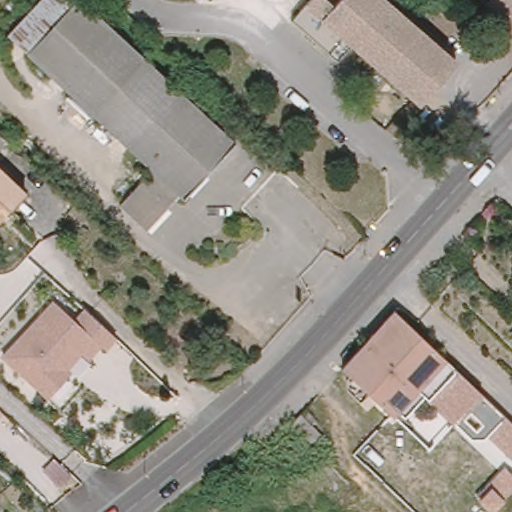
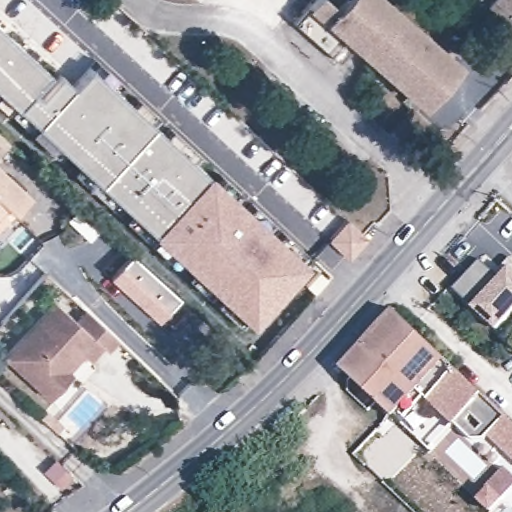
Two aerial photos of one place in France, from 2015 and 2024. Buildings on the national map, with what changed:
demolished [(184,198),(179,195),(147,230),(119,204),(152,169),(26,54),(27,53),(75,0),(82,0),(237,142),(184,198)]
unchanged [(310,0),(326,0),(331,4),(336,0),(386,0),(404,15),(367,57),(352,44),(335,61),(322,49),(312,40),(291,22),(310,0)]
unchanged [(490,0),(512,0),(512,27),(487,4),(490,0)]
unchanged [(367,57),(404,15),(456,60),(441,77),(430,89),(419,102),(407,92),(394,81),(367,57)]
new [(35,91),(41,96),(60,75),(73,87),(91,68),(207,176),(209,173),(309,264),(252,326),(0,92),(0,27),(50,73),(35,91)]
unchanged [(8,142),(0,151),(0,136),(8,142)]
unchanged [(25,191),(9,208),(0,218),(0,168),(25,191)]
new [(348,256),(328,238),(347,217),(367,236),(348,256)]
new [(454,289),(480,260),(496,273),(512,257),(512,314),(498,329),(454,289)]
new [(317,271),(326,279),(313,292),(305,285),(315,274),(317,271)]
unchanged [(76,316),(86,307),(116,335),(104,346),(96,340),(50,392),(3,357),(53,300),(76,316)]
unchanged [(373,330),(395,306),(459,367),(480,387),(451,416),(426,392),(406,412),(398,405),(393,410),(375,394),(343,363),(373,330)]
unchanged [(461,426),(451,416),(480,387),(512,418),(512,450),(474,413),(461,426)]
unchanged [(301,413),(306,407),(320,421),(315,427),(322,434),(311,446),(289,425),(301,413)]
unchanged [(504,464),(512,473),(512,493),(493,512),(491,512),(475,496),(504,464)]

